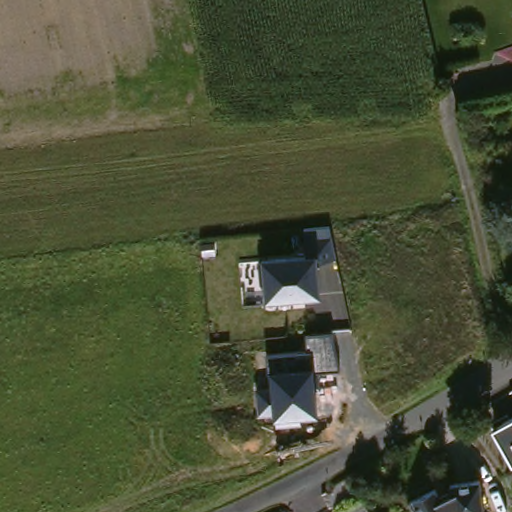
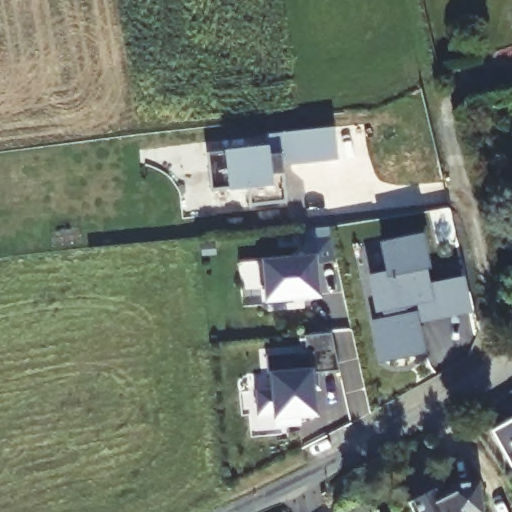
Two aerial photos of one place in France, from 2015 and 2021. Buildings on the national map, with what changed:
new [(269,151),(268,140),(335,134),(338,165),(293,169),(292,165),(284,165),(287,207),(250,210),(249,191),(212,194),(209,156),(269,151)]
unchanged [(327,221),(349,325),(320,327),(317,308),(269,311),(263,265),(306,262),(303,223),(327,221)]
new [(430,355),(389,364),(381,327),(389,325),(386,313),(379,315),(371,282),(390,277),(383,248),(422,240),(429,270),(425,271),(429,289),(450,285),(463,281),(471,313),(457,316),(436,321),(423,324),(430,355)]
unchanged [(276,372),(273,353),(314,349),(312,333),(339,330),(347,361),(321,370),(325,412),(308,414),(309,421),(285,423),(283,411),(267,413),(265,390),(282,388),(280,372),(276,372)]
unchanged [(437,489),(437,490),(439,490),(443,500),(454,495),(454,485),(484,481),(489,512),(415,512),(410,502),(437,489)]
unchanged [(334,512),(357,496),(369,512),(334,512)]

